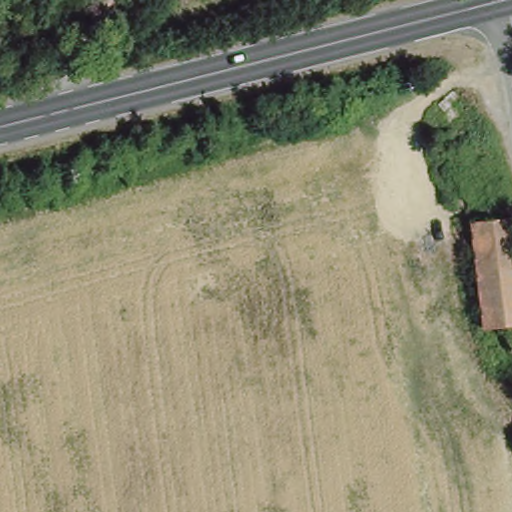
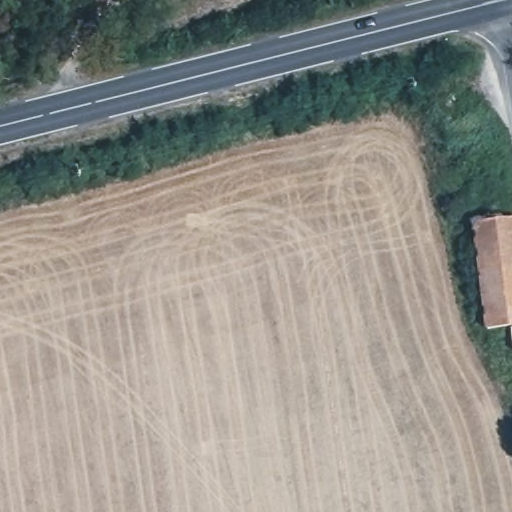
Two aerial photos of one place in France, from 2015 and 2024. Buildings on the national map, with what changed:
unchanged [(428,105),(446,89),(457,100),(450,106),(456,115),(444,126),(428,105)]
unchanged [(512,218),(512,330),(491,332),(476,225),(512,218)]

